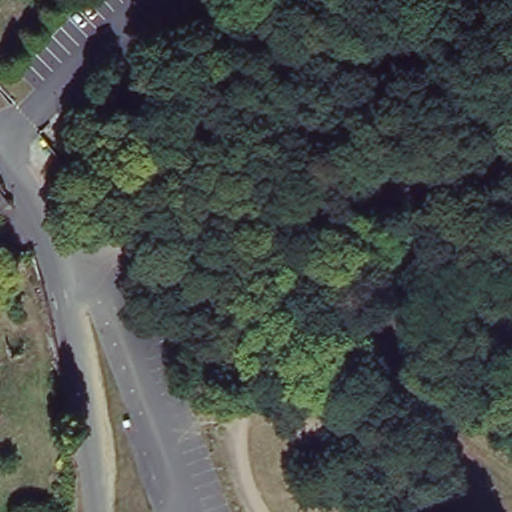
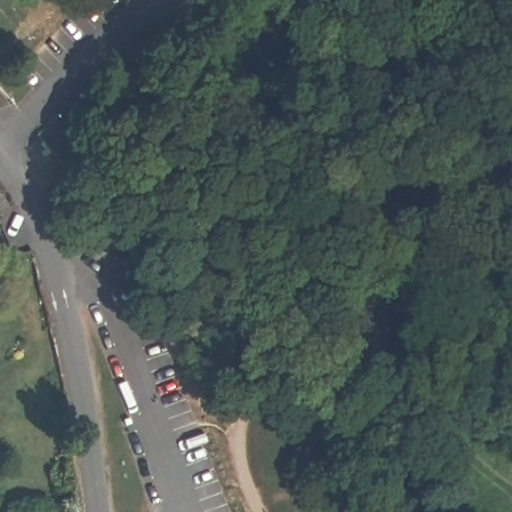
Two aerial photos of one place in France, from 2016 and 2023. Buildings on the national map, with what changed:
unchanged [(0,190),(10,204),(0,211),(0,190)]

